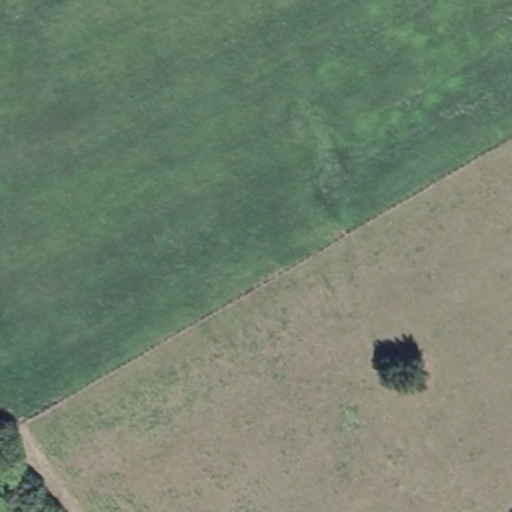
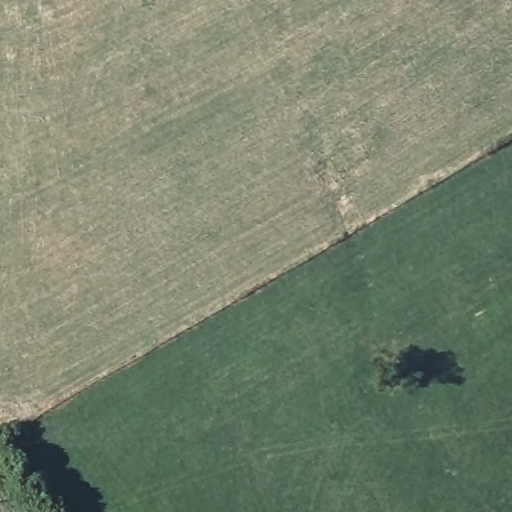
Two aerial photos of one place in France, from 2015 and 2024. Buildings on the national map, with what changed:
[]

